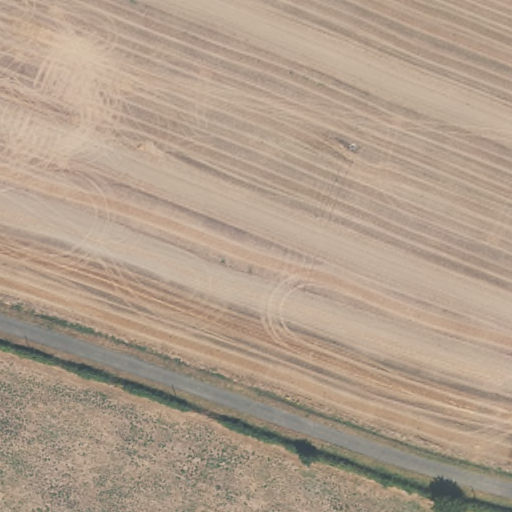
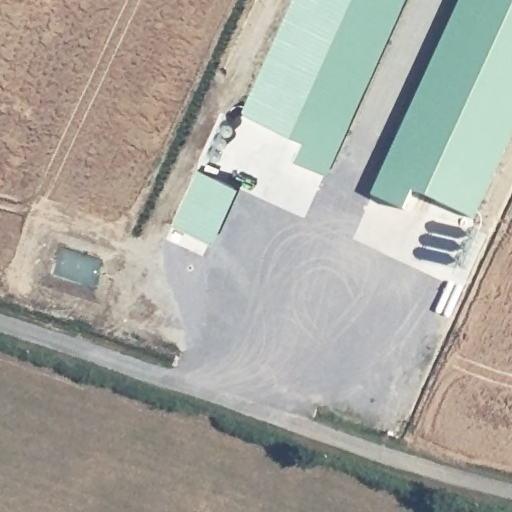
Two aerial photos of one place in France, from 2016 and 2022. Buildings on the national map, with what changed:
new [(291,159),(299,139),(239,112),(289,0),(403,0),(325,174),(291,159)]
new [(415,192),(406,211),(372,195),(460,0),(512,0),(512,134),(474,218),(415,192)]
new [(196,167),(235,184),(209,240),(171,223),(196,167)]

